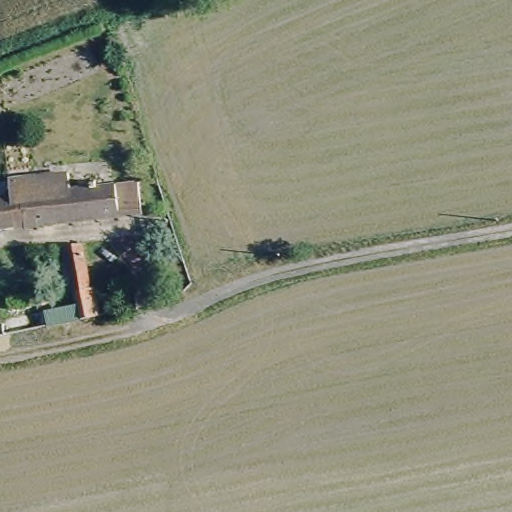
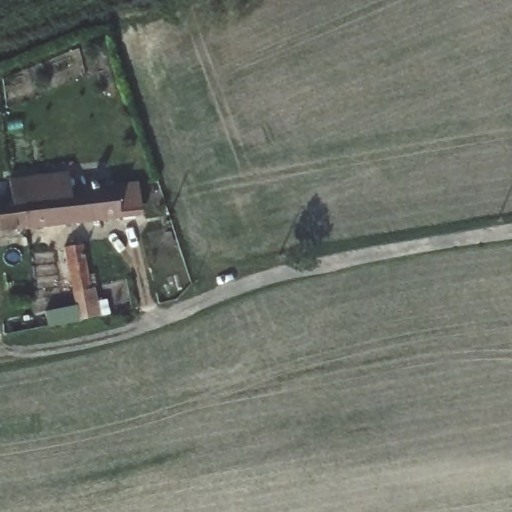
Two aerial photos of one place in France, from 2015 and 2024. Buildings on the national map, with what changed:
unchanged [(55,220),(56,230),(49,231),(49,221),(0,226),(0,198),(16,197),(13,178),(38,175),(71,171),(73,191),(94,188),(93,178),(99,177),(99,187),(118,185),(121,213),(55,220)]
unchanged [(18,316),(18,320),(73,309),(63,251),(80,248),(86,291),(91,291),(96,321),(0,337),(0,318),(18,316)]

